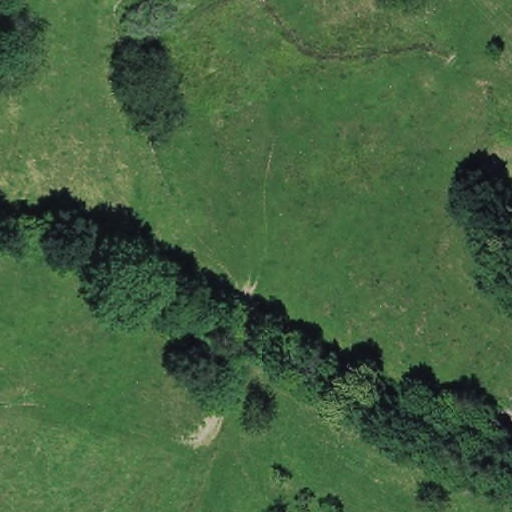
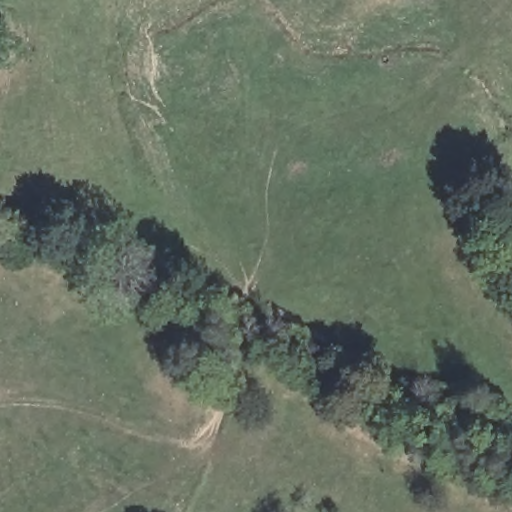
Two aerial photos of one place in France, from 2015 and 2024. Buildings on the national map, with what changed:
[]

